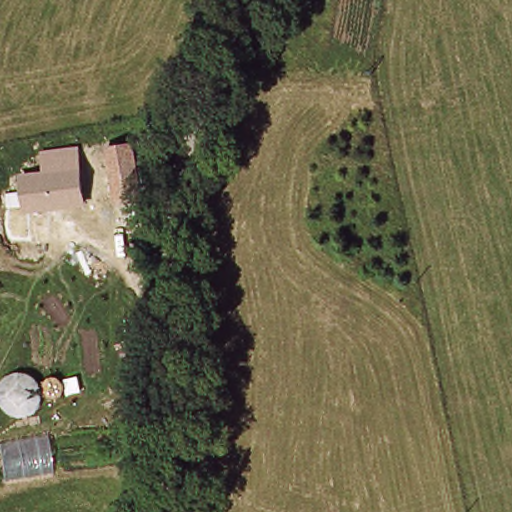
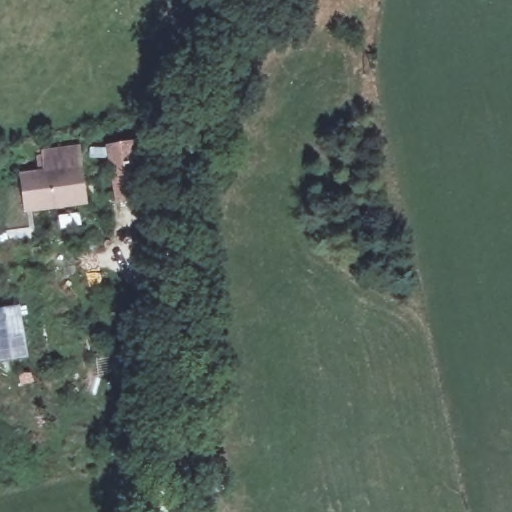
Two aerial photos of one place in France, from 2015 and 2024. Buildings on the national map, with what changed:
unchanged [(105,149),(135,142),(145,200),(116,205),(105,149)]
unchanged [(18,175),(42,171),(40,151),(80,145),(87,205),(22,212),(18,175)]
new [(0,364),(0,308),(21,305),(28,359),(0,364)]

